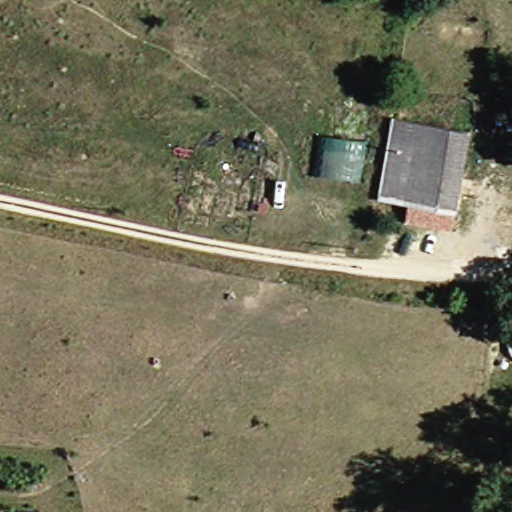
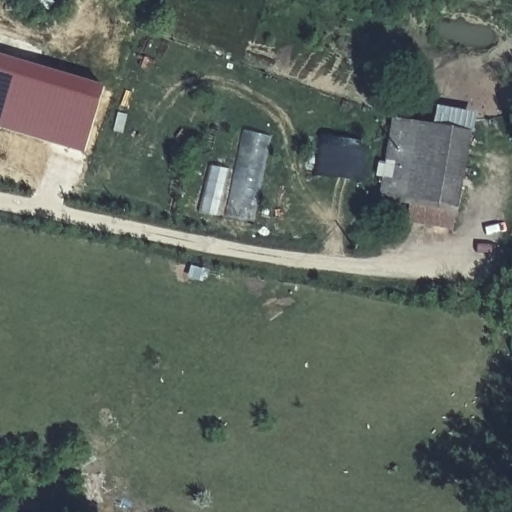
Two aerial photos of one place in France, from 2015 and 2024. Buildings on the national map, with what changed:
new [(103,86),(83,152),(0,127),(0,55),(103,86)]
unchanged [(464,202),(388,194),(401,117),(477,127),(464,202)]

